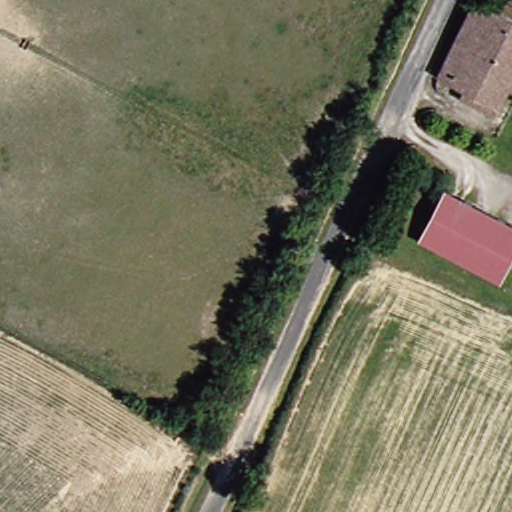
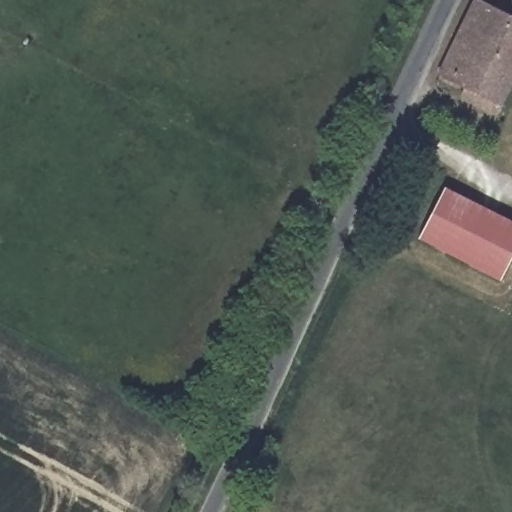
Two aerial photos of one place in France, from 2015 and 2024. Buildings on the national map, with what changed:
unchanged [(469,97),(472,87),(445,76),(454,54),(475,0),(498,0),(512,7),(512,101),(511,104),(506,114),(469,97)]
unchanged [(422,240),(448,189),(512,223),(512,267),(505,282),(422,240)]

